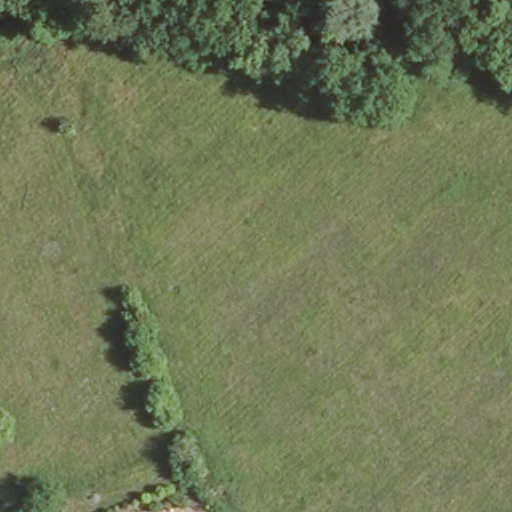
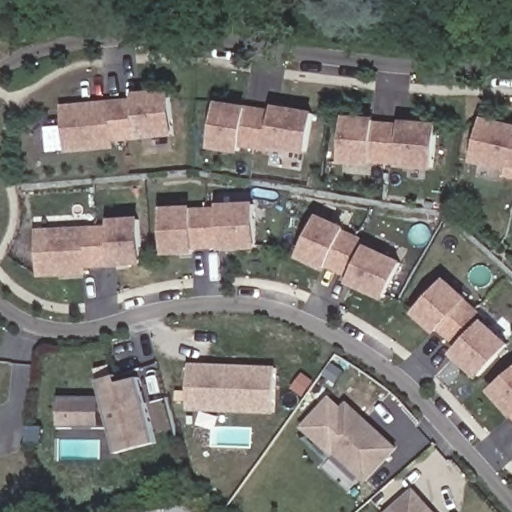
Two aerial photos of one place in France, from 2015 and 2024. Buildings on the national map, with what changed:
new [(138,140),(115,142),(116,149),(67,153),(62,105),(134,97),(134,93),(172,90),(176,135),(138,140)]
new [(271,148),(270,152),(243,148),(242,154),(210,148),(218,100),(274,110),(275,105),(316,112),(308,154),(271,148)]
new [(343,163),(347,115),(439,122),(435,170),(343,163)]
new [(512,123),(512,178),(505,176),(507,170),(473,162),(484,116),(512,123)]
new [(196,251),(196,255),(165,257),(162,207),(193,205),(193,209),(219,209),(218,202),(256,201),(258,249),(196,251)]
new [(347,283),(348,280),(298,256),(318,214),(346,226),(343,230),(367,241),(366,244),(402,260),(384,300),(347,283)]
new [(129,265),(128,267),(88,268),(88,275),(39,278),(35,229),(109,226),(108,218),(139,216),(144,265),(129,265)]
new [(445,277),(468,298),(465,302),(511,344),(478,377),(451,353),(457,347),(439,331),(436,334),(413,312),(445,277)]
new [(189,410),(190,362),(277,365),(275,413),(189,410)]
new [(512,370),(512,415),(489,390),(512,370)]
new [(120,452),(113,427),(59,426),(59,397),(104,396),(100,380),(119,375),(121,382),(139,377),(158,443),(120,452)]
new [(336,455),(334,456),(301,426),(329,394),(342,405),(347,400),(400,447),(368,483),(336,455)]
new [(415,487),(437,512),(387,512),(415,487)]

